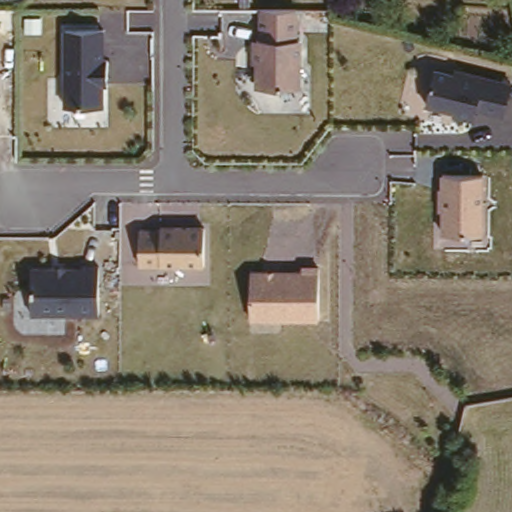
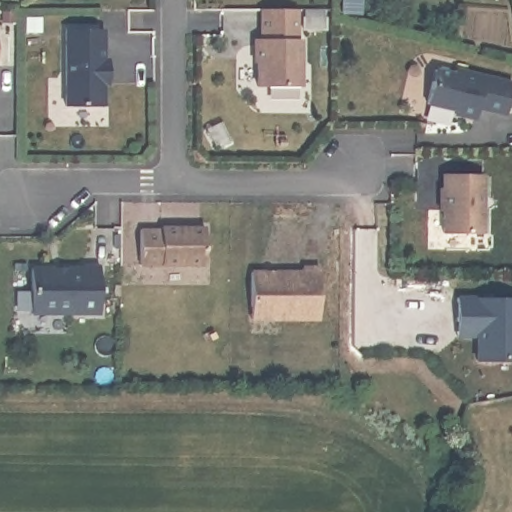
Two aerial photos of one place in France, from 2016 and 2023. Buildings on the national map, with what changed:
unchanged [(293,6),(295,40),(300,40),(300,86),(255,86),(255,71),(250,67),(250,37),(258,37),(257,7),(293,6)]
unchanged [(101,31),(103,58),(106,59),(106,85),(102,85),(104,105),(65,105),(62,31),(101,31)]
unchanged [(452,71),(455,65),(510,79),(500,114),(477,109),(474,118),(455,114),(455,109),(426,103),(433,67),(452,71)]
unchanged [(483,233),(440,233),(439,175),(485,175),(483,233)]
unchanged [(204,266),(140,265),(139,228),(160,228),(160,225),(203,226),(204,266)]
unchanged [(100,313),(32,314),(31,266),(98,264),(100,313)]
unchanged [(317,321),(251,321),(251,268),(301,269),(301,265),(318,266),(317,321)]
new [(475,362),(476,339),(456,339),(456,295),(512,296),(512,362),(475,362)]

